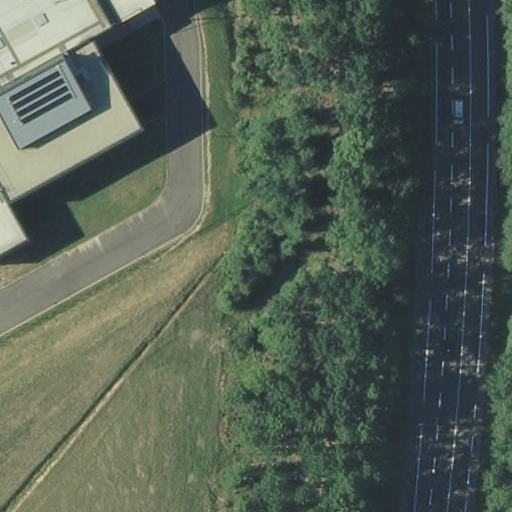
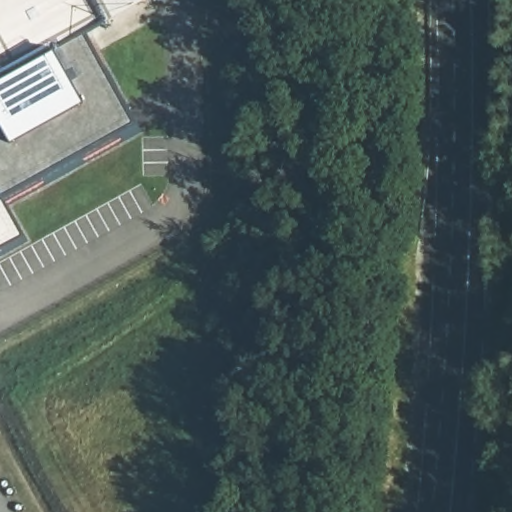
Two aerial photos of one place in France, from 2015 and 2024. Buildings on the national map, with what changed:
unchanged [(152,3),(88,41),(138,129),(7,202),(26,240),(0,255),(0,0),(151,0),(152,3)]

